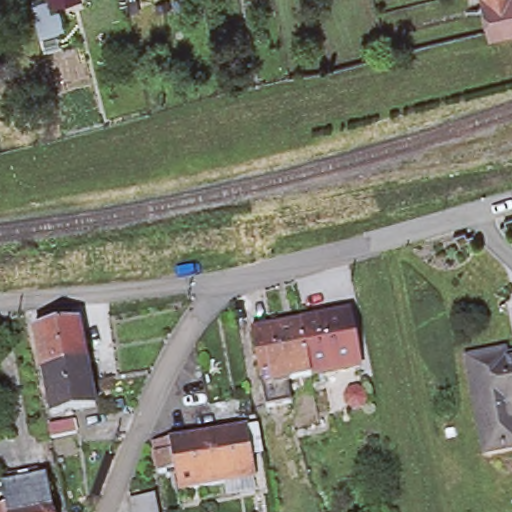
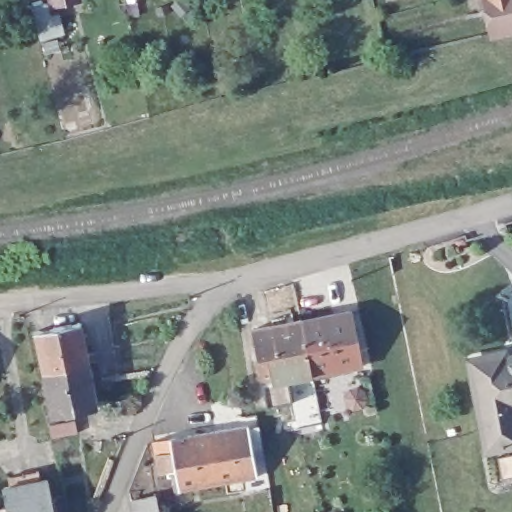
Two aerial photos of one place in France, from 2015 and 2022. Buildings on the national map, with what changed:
unchanged [(64,8),(70,34),(38,41),(31,6),(50,1),(50,0),(80,0),(80,4),(64,8)]
unchanged [(483,0),(512,0),(512,31),(490,36),(483,0)]
unchanged [(337,380),(335,374),(315,378),(305,323),(352,314),(363,368),(345,372),(346,378),(337,380)]
unchanged [(296,405),(270,410),(255,332),(275,329),(274,321),(288,319),(290,326),(305,323),(315,378),(292,383),(296,405)]
unchanged [(78,323),(86,361),(42,371),(34,331),(78,323)]
unchanged [(504,363),(512,361),(512,398),(510,399),(512,406),(512,447),(485,453),(466,361),(502,354),(504,363)]
unchanged [(95,405),(46,416),(45,408),(50,407),(47,392),(42,393),(40,386),(45,385),(42,371),(86,361),(95,405)]
unchanged [(75,420),(77,432),(52,438),(50,426),(75,420)]
unchanged [(232,501),(228,480),(183,489),(180,473),(173,475),(172,471),(165,472),(158,442),(174,439),(250,424),(250,426),(260,424),(265,451),(256,453),(260,474),(257,475),(261,495),(232,501)]
unchanged [(6,506),(4,493),(11,491),(9,482),(40,475),(41,484),(48,483),(52,500),(54,512),(0,512),(0,511),(7,510),(6,506)]
unchanged [(132,498),(155,494),(159,512),(135,512),(132,498)]

